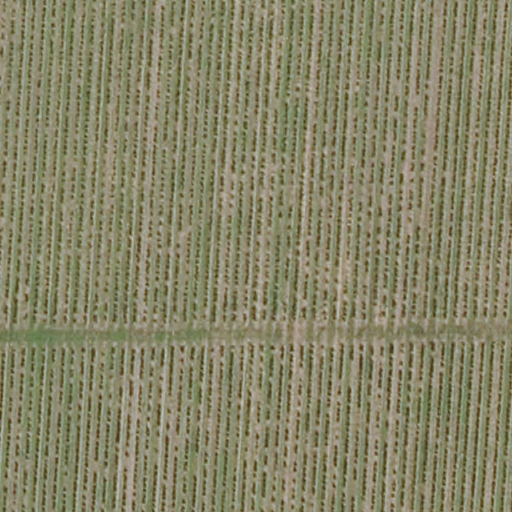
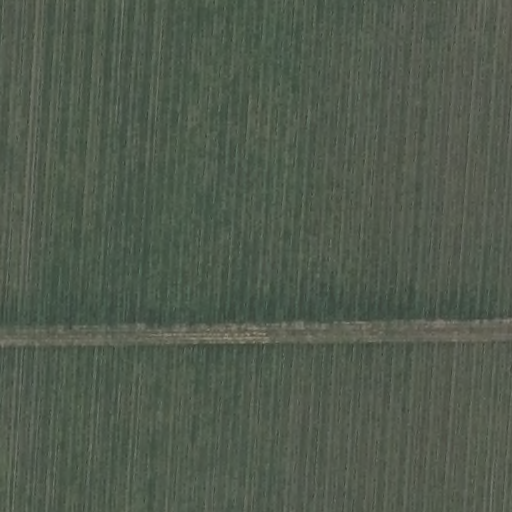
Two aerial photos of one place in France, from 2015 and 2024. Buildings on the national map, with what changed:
[]

